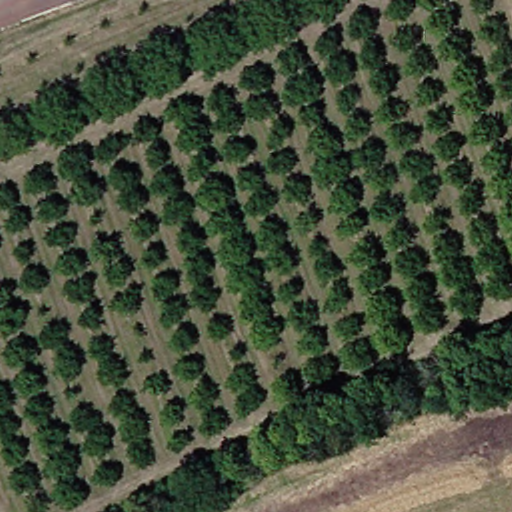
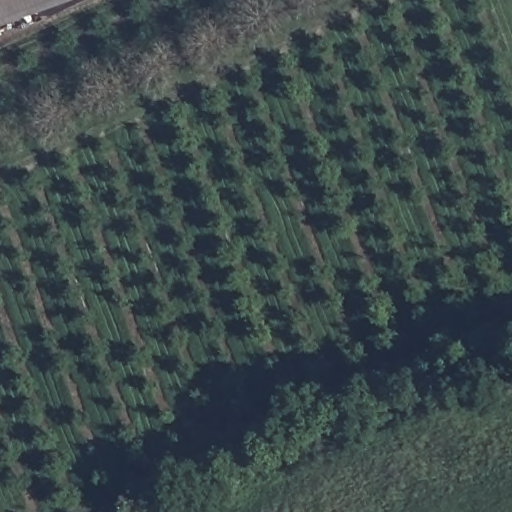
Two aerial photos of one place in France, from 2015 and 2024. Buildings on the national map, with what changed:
unchanged [(0,35),(0,0),(88,0),(0,35)]

